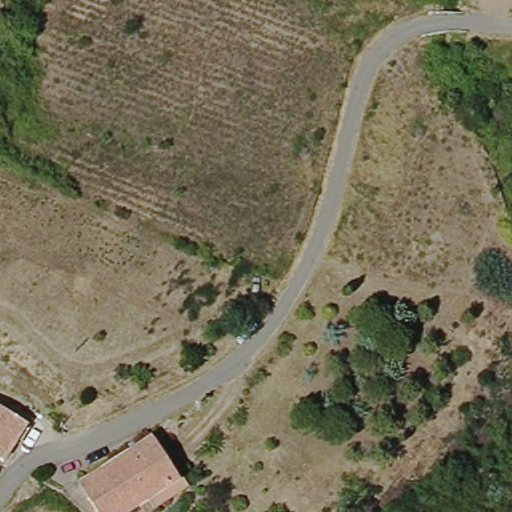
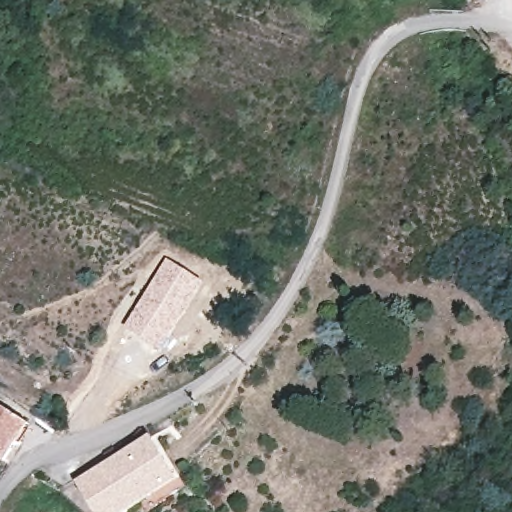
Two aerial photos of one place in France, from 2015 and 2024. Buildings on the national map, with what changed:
new [(165,258),(205,282),(160,349),(122,324),(165,258)]
unchanged [(27,424),(13,445),(3,456),(0,454),(0,406),(27,424)]
unchanged [(154,433),(184,472),(165,485),(170,499),(145,512),(139,512),(134,504),(123,512),(93,512),(63,489),(83,478),(154,433)]

